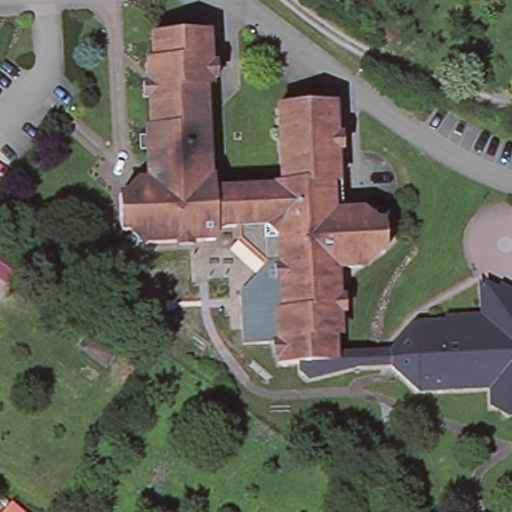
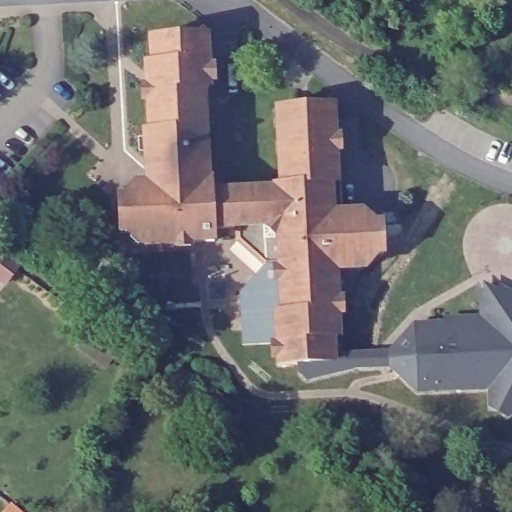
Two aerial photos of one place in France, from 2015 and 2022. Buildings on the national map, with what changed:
unchanged [(145,199),(144,185),(150,184),(149,132),(154,131),(153,80),(175,80),(182,72),(182,65),(160,66),(159,40),(182,40),(182,43),(190,42),(190,39),(214,39),(215,89),(211,89),(214,182),(216,182),(217,195),(280,193),(280,190),(285,190),(282,113),(307,112),(307,116),(315,115),(315,112),(340,111),(342,190),(337,190),(337,220),(362,220),(362,232),(385,231),(386,260),(362,261),(363,272),(339,273),(340,325),(316,325),(311,331),(311,338),(335,338),(336,350),(337,363),(314,365),(313,360),(305,360),(305,365),(297,365),(279,365),(277,313),(280,313),(279,265),(266,265),(241,241),(241,229),(215,230),(215,242),(145,244),(145,232),(122,232),(120,200),(145,199)]
unchanged [(492,413),(491,395),(415,395),(390,373),(300,387),(297,365),(305,365),(305,360),(313,360),(314,365),(337,363),(336,350),(391,342),(413,325),(475,317),(475,287),(494,285),(504,295),(512,294),(512,417),(509,420),(492,413)]
unchanged [(120,350),(105,370),(85,356),(78,351),(87,338),(92,331),(120,350)]
unchanged [(3,512),(10,503),(21,512),(3,512)]

